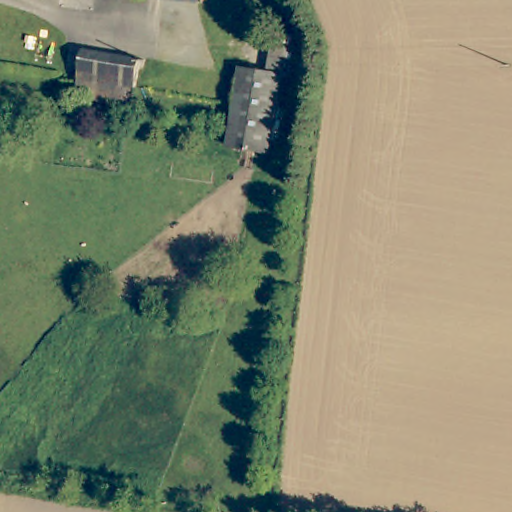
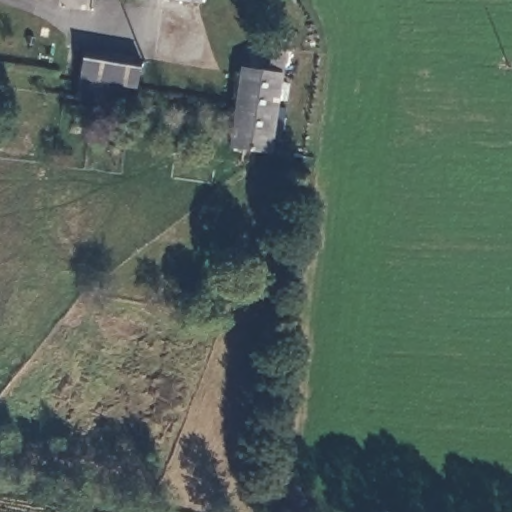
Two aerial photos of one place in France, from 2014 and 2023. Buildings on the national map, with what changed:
unchanged [(285,43),(273,151),(243,147),(251,68),(270,69),(272,41),(285,43)]
unchanged [(146,57),(142,87),(126,85),(122,103),(81,98),(87,53),(89,49),(146,57)]

